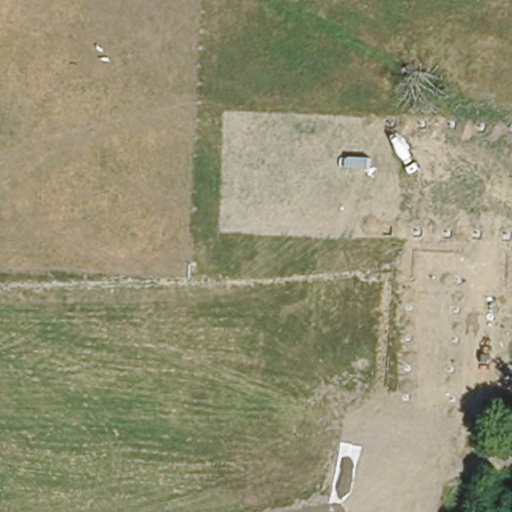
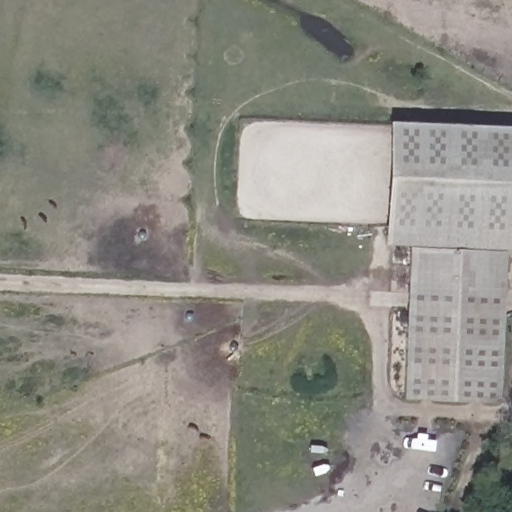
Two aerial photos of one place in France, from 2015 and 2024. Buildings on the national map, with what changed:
new [(410,246),(385,245),(389,121),(512,126),(512,250),(506,250),(410,246)]
new [(403,399),(410,246),(506,250),(500,402),(403,399)]

